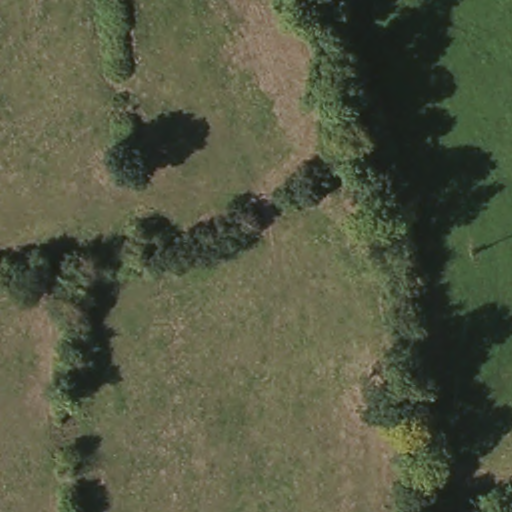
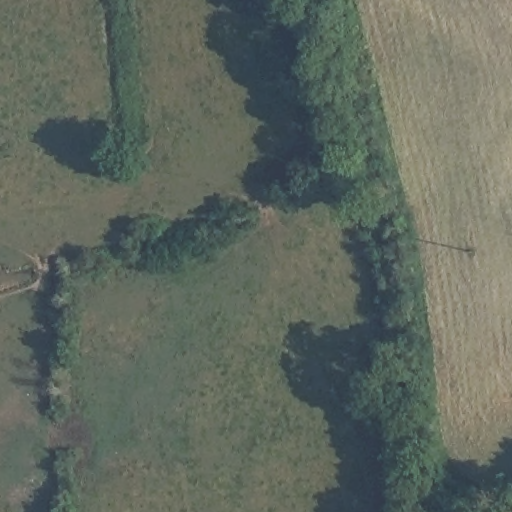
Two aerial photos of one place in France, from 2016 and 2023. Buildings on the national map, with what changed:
[]

